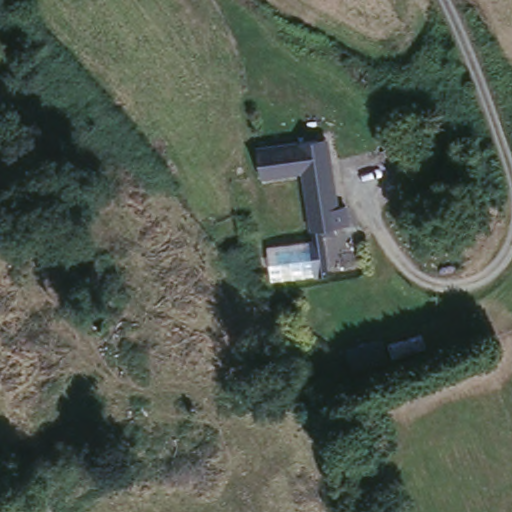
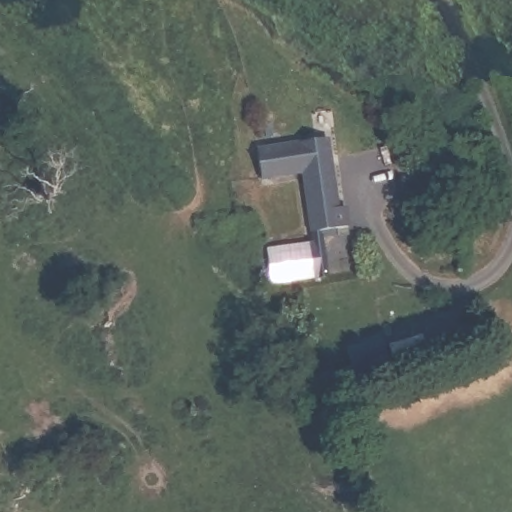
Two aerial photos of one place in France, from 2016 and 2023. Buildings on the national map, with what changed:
unchanged [(300,141),(300,140),(317,138),(327,137),(330,165),(335,207),(343,206),(346,225),(332,226),(333,233),(319,235),(318,228),(310,229),(302,169),(261,174),(257,146),(300,141)]

